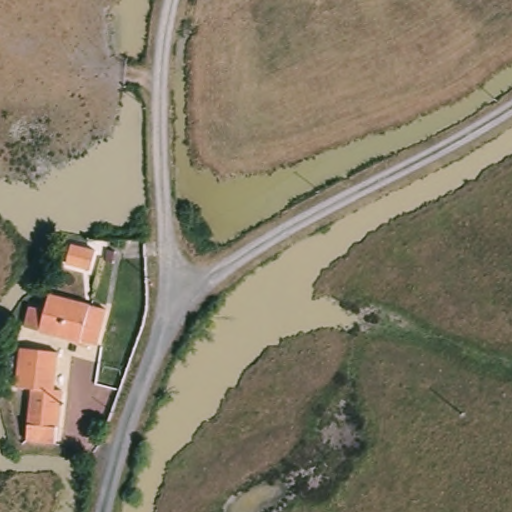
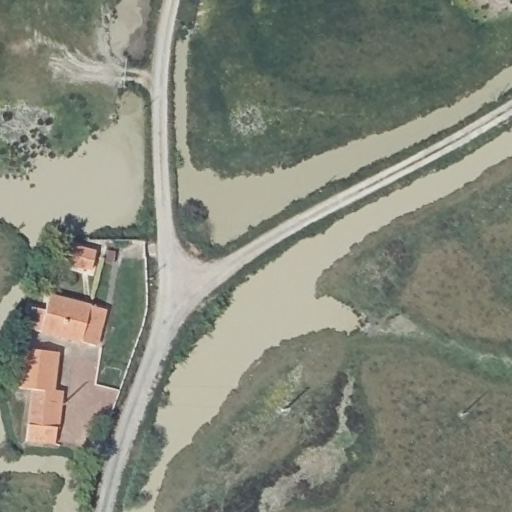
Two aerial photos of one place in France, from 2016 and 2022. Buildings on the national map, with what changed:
unchanged [(94,249),(89,270),(67,264),(71,243),(94,249)]
unchanged [(44,311),(45,295),(68,299),(61,342),(22,336),(25,309),(44,311)]
unchanged [(105,305),(99,348),(61,342),(68,299),(105,305)]
unchanged [(18,394),(21,354),(61,357),(57,442),(25,441),(26,394),(18,394)]

